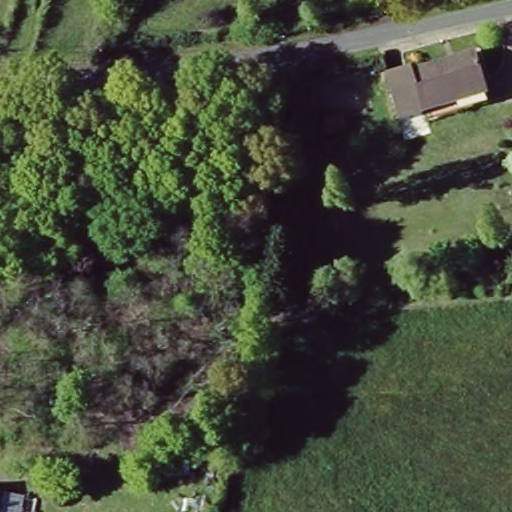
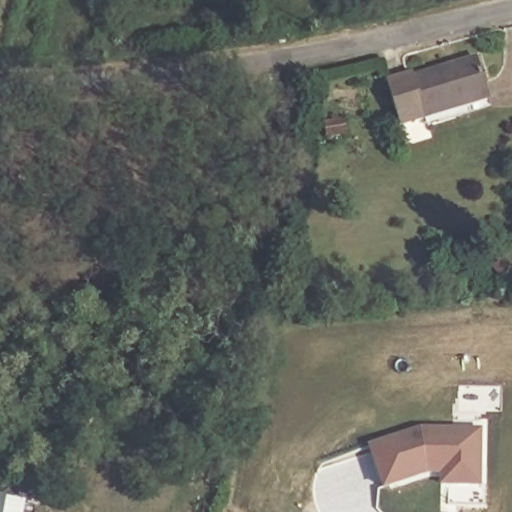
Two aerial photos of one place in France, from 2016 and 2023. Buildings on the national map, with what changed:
unchanged [(402,129),(391,86),(414,79),(415,84),(477,68),(485,105),(402,129)]
unchanged [(331,126),(332,138),(309,139),(308,127),(331,126)]
new [(429,481),(385,494),(371,449),(424,431),(487,432),(485,491),(458,490),(447,490),(447,478),(429,481)]

